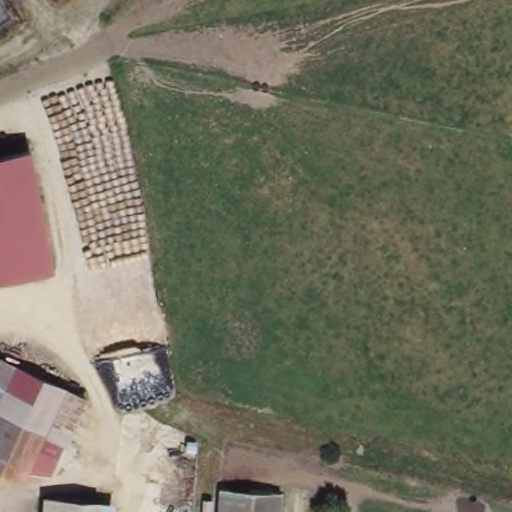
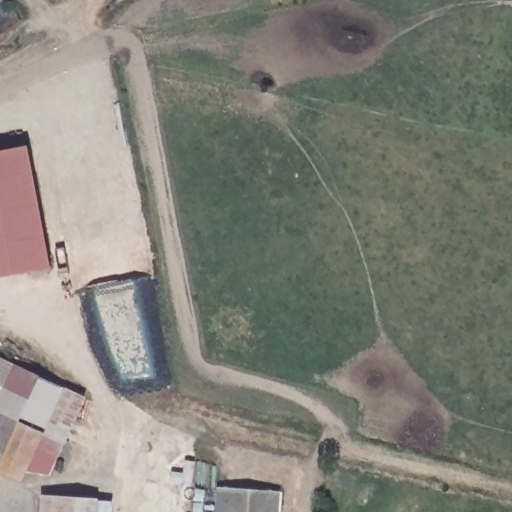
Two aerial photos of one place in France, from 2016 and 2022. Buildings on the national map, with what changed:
unchanged [(0,277),(0,152),(26,145),(57,262),(0,277)]
unchanged [(70,386),(90,399),(68,446),(52,438),(22,482),(0,470),(0,361),(2,356),(70,386)]
unchanged [(216,512),(217,489),(277,490),(277,512),(216,512)]
unchanged [(114,512),(46,512),(47,496),(114,501),(114,512)]

